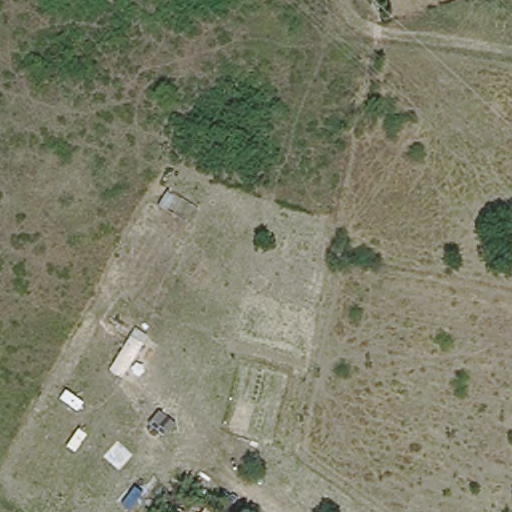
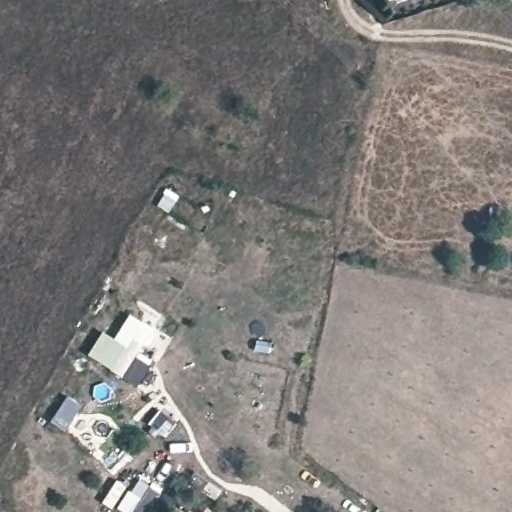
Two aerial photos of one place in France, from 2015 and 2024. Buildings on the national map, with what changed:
new [(112,338),(129,313),(153,325),(139,350),(152,360),(137,386),(87,355),(103,331),(112,338)]
unchanged [(192,507),(200,512),(189,512),(192,507)]

